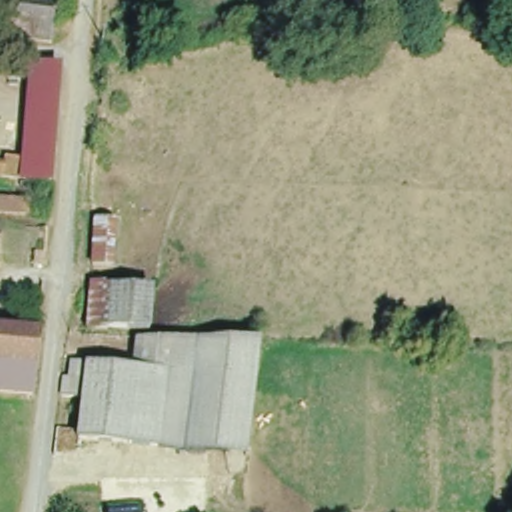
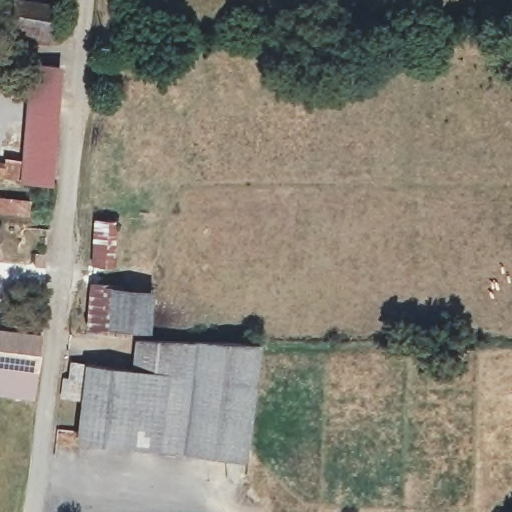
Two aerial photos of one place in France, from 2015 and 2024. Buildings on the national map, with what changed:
unchanged [(56,33),(10,25),(15,0),(63,0),(56,33)]
unchanged [(55,60),(47,176),(0,173),(0,155),(19,156),(26,58),(55,60)]
unchanged [(92,265),(96,220),(116,220),(113,266),(92,265)]
unchanged [(0,250),(0,249),(0,221),(2,221),(0,250)]
unchanged [(88,323),(91,278),(116,278),(112,323),(88,323)]
unchanged [(157,279),(154,324),(112,323),(116,278),(157,279)]
unchanged [(35,326),(31,361),(0,358),(0,323),(35,326)]
unchanged [(83,392),(60,389),(62,370),(64,371),(69,371),(71,355),(134,360),(137,333),(260,335),(246,455),(77,433),(83,392)]
unchanged [(28,390),(0,387),(0,358),(31,361),(28,390)]

